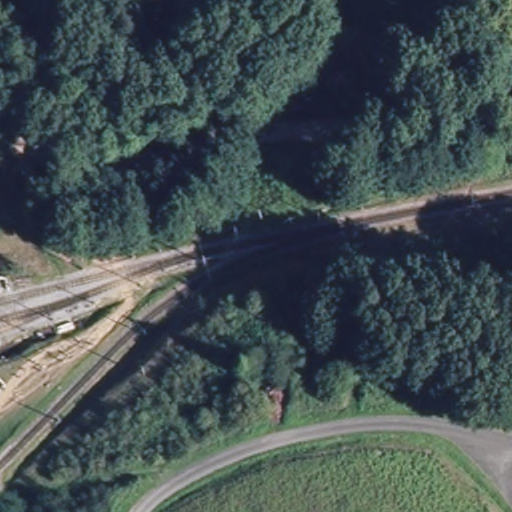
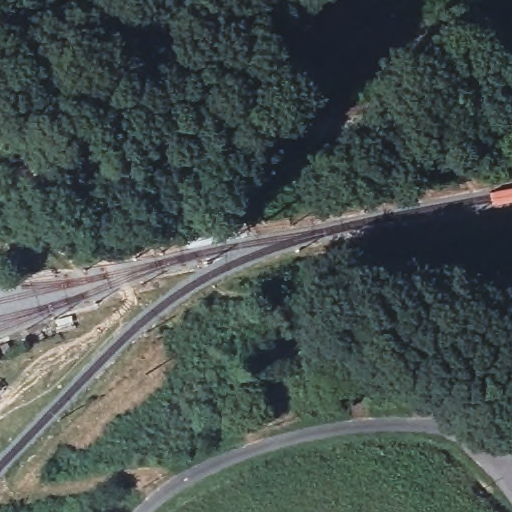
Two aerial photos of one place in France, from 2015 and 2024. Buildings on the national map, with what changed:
[]

